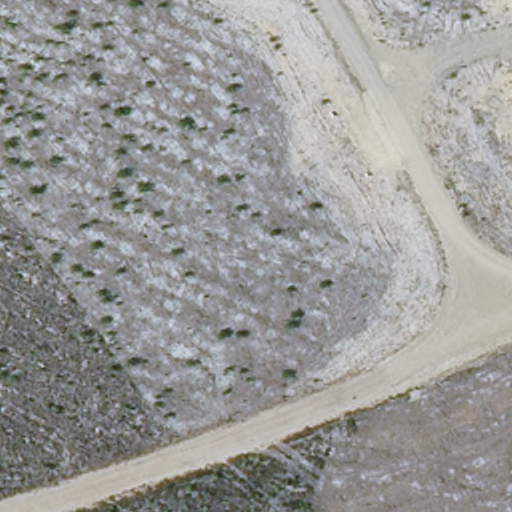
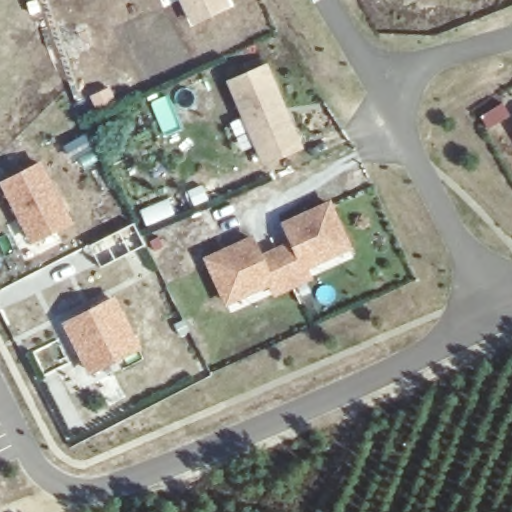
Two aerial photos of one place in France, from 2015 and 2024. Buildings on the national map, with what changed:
new [(232,6),(193,26),(180,0),(230,0),(232,6)]
new [(267,60),(305,146),(265,165),(227,78),(267,60)]
new [(72,221),(29,243),(0,187),(0,181),(41,159),(72,221)]
new [(254,232),(262,251),(289,240),(279,221),(331,196),(353,247),(310,266),(315,276),(275,295),(270,284),(226,306),(205,255),(254,232)]
new [(141,348),(90,376),(61,323),(115,295),(141,348)]

